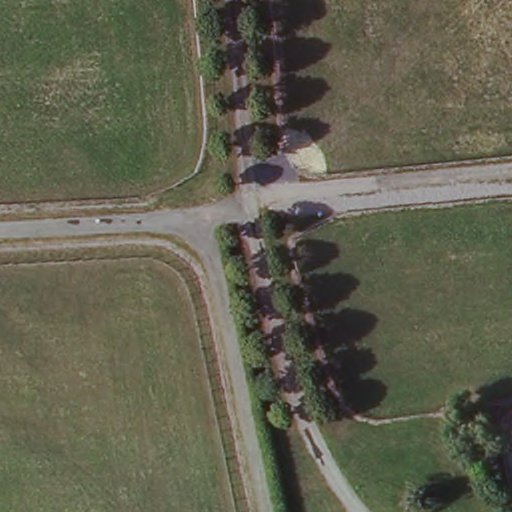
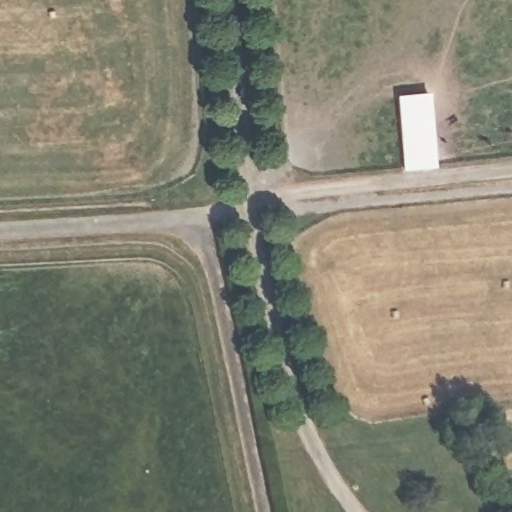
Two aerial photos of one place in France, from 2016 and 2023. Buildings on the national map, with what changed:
new [(428,93),(436,166),(407,169),(397,96),(428,93)]

